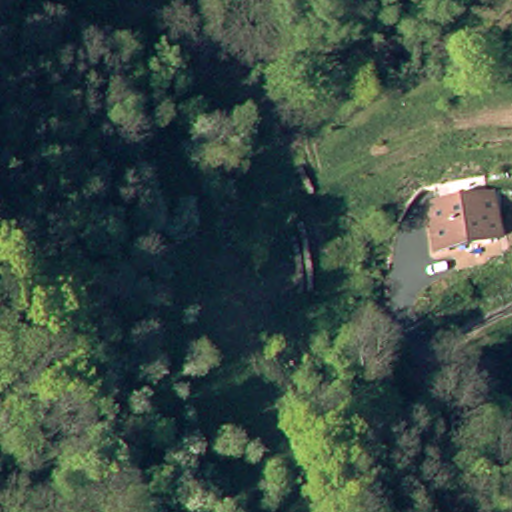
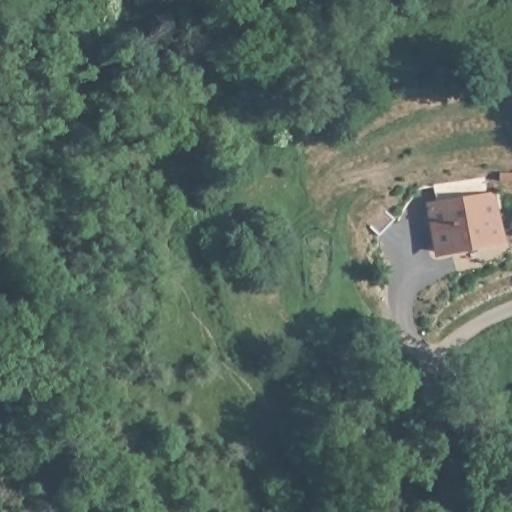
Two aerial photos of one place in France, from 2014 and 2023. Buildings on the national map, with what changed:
unchanged [(463,247),(433,250),(426,194),(488,187),(495,244),(471,246),(463,247)]

